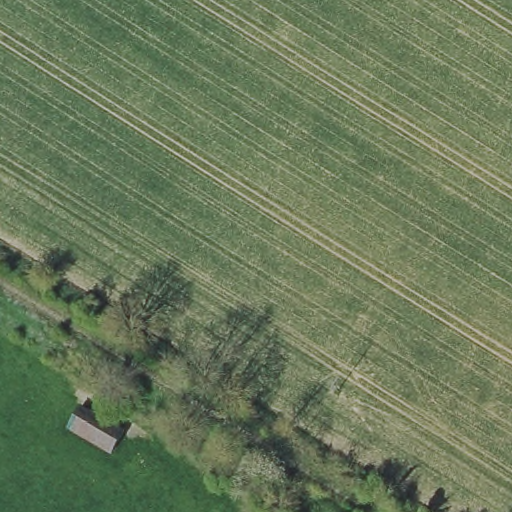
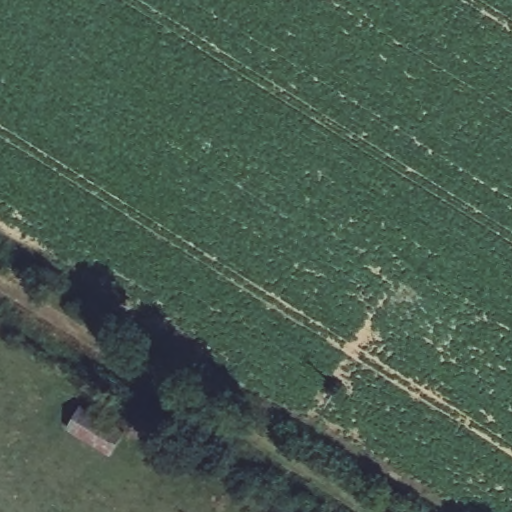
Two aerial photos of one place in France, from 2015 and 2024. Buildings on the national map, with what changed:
unchanged [(65,431),(80,402),(127,429),(110,458),(65,431)]

